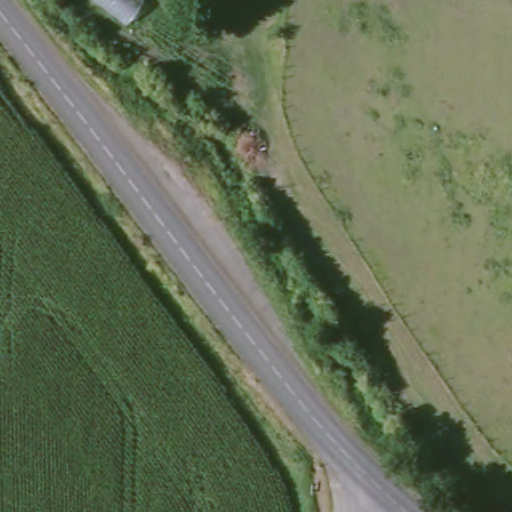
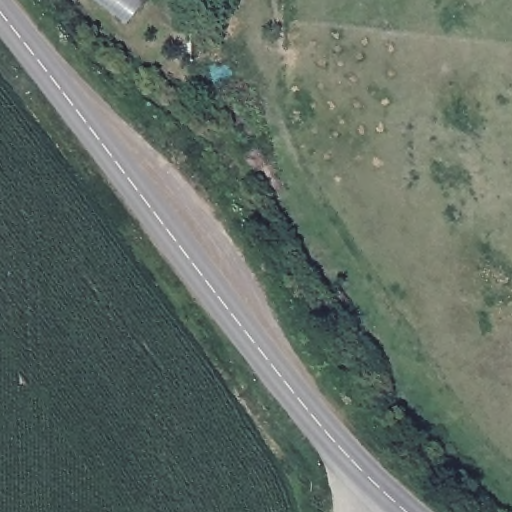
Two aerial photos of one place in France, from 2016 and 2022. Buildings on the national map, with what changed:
unchanged [(148,1),(129,24),(95,0),(147,0),(148,1)]

